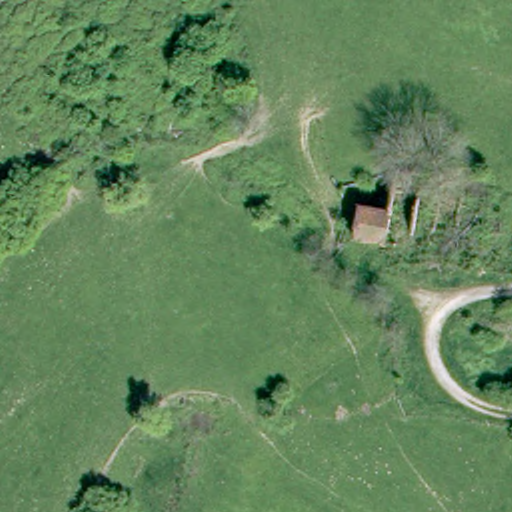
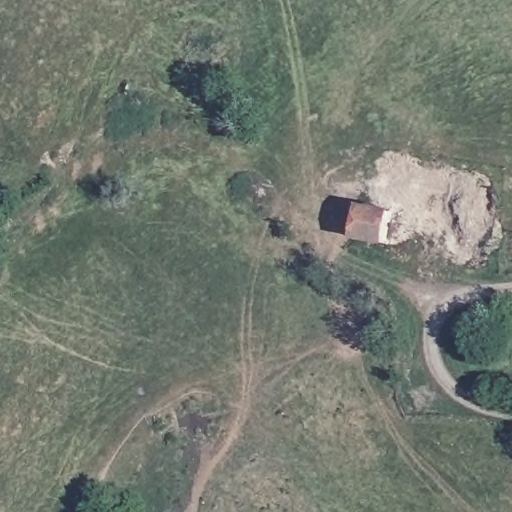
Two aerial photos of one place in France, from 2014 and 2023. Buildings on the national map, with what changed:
unchanged [(388,219),(385,232),(350,230),(356,201),(390,208),(388,219)]

